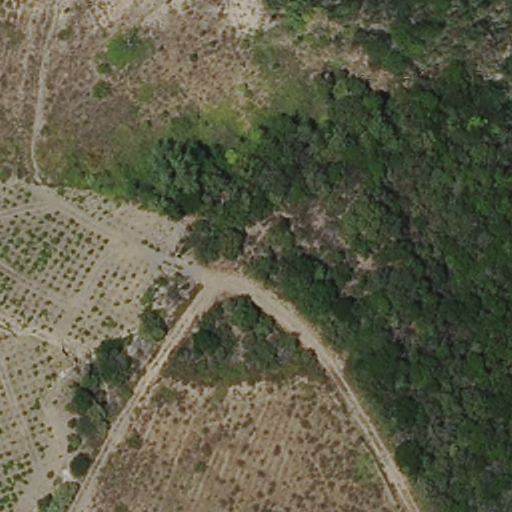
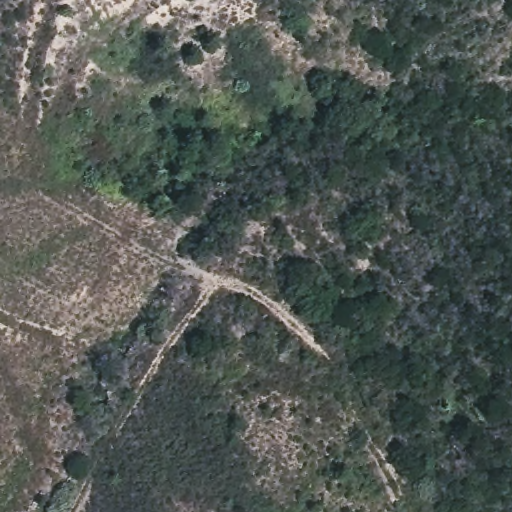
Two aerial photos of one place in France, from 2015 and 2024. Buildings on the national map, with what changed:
[]

